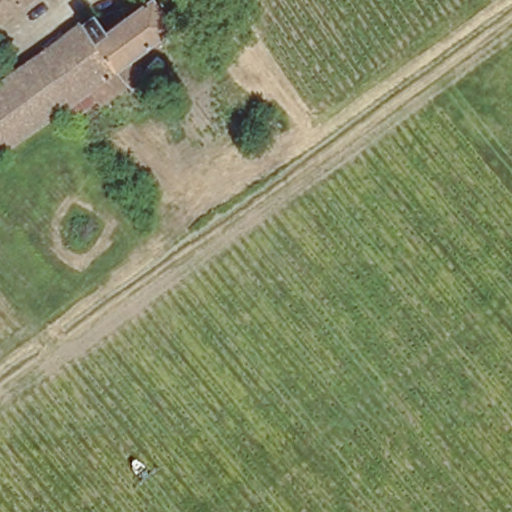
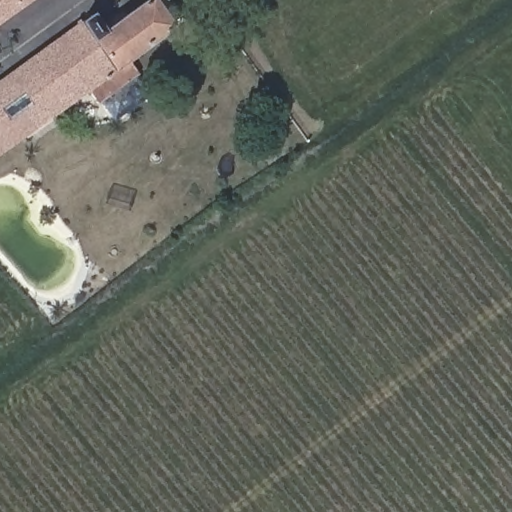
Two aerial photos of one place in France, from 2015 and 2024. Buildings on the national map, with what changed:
unchanged [(32,0),(0,22),(0,0),(32,0)]
unchanged [(77,23),(89,14),(101,31),(144,0),(150,0),(170,26),(123,61),(134,75),(96,103),(87,90),(55,113),(0,152),(0,80),(52,43),(77,23)]

